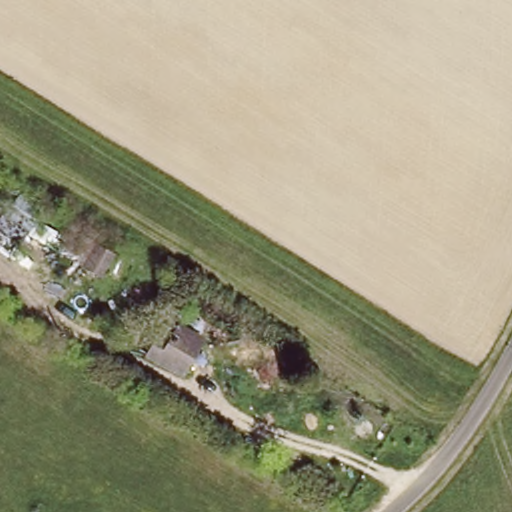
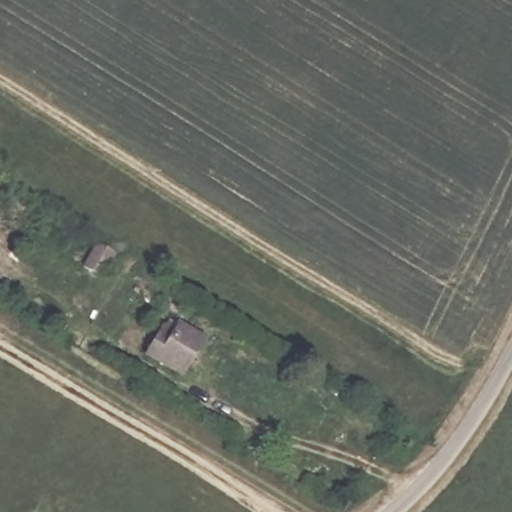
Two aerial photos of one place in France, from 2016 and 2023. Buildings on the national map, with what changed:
unchanged [(107,256),(95,275),(82,267),(93,248),(107,256)]
unchanged [(155,303),(127,286),(137,270),(165,287),(155,303)]
unchanged [(176,339),(181,329),(198,340),(177,374),(148,356),(164,331),(176,339)]

